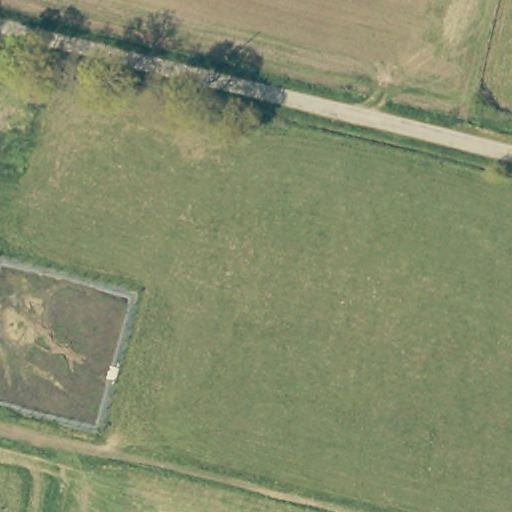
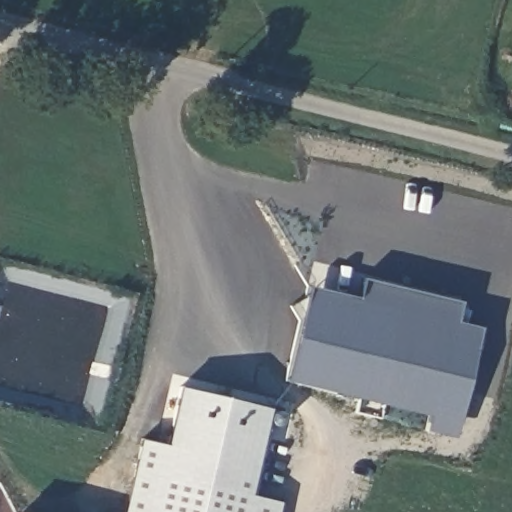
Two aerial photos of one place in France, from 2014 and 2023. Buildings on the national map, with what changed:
new [(458,328),(483,334),(461,423),(437,417),(439,407),(300,372),(319,295),(359,305),(366,275),(465,300),(458,328)]
new [(359,305),(319,295),(300,372),(439,407),(437,417),(289,381),(312,283),(361,295),(359,305)]
new [(151,512),(182,385),(272,407),(247,512),(151,512)]

